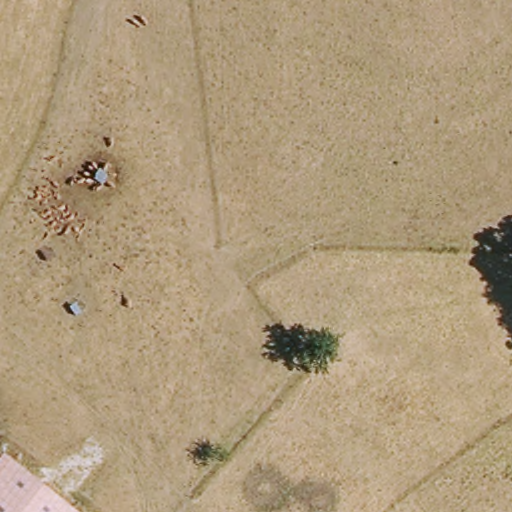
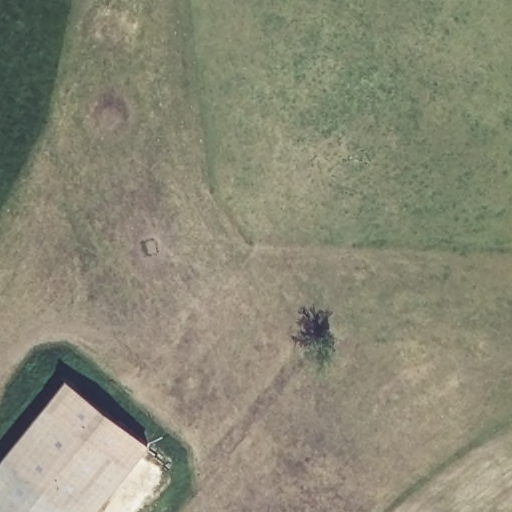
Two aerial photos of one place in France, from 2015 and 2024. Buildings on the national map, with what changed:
new [(46,400),(130,467),(93,512),(79,512),(3,455),(46,400)]
unchanged [(0,512),(0,459),(3,455),(79,512),(0,512)]

